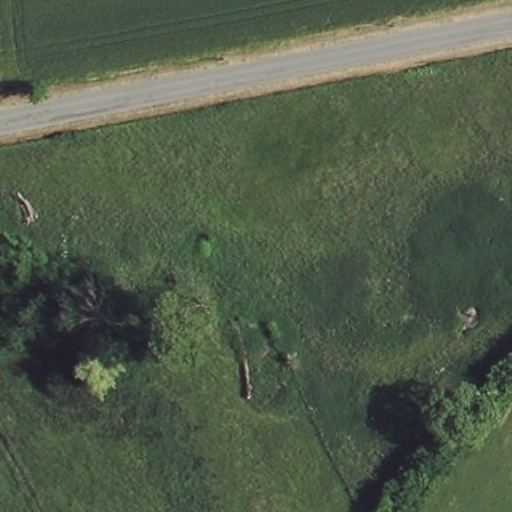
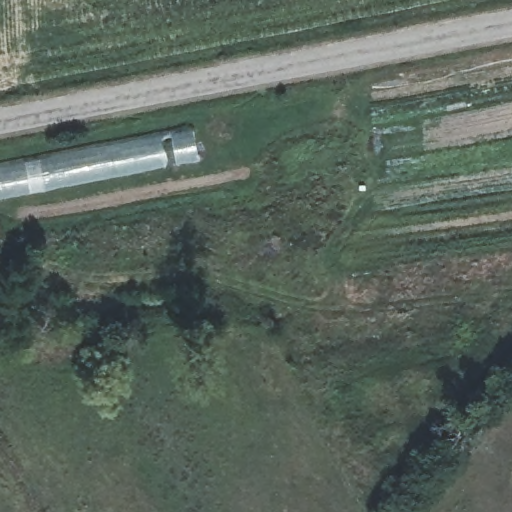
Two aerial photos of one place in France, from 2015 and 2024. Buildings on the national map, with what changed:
new [(0,196),(0,165),(193,128),(199,157),(0,196)]

